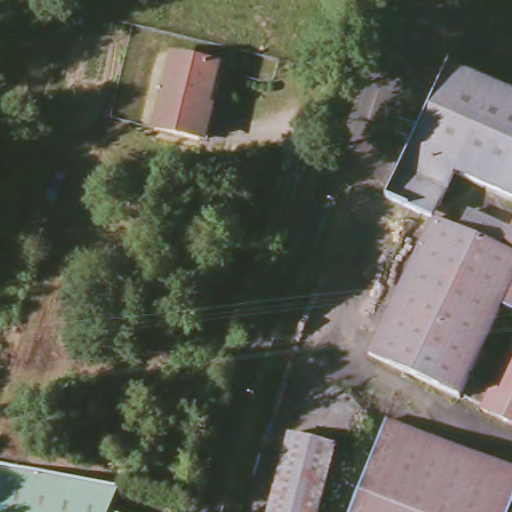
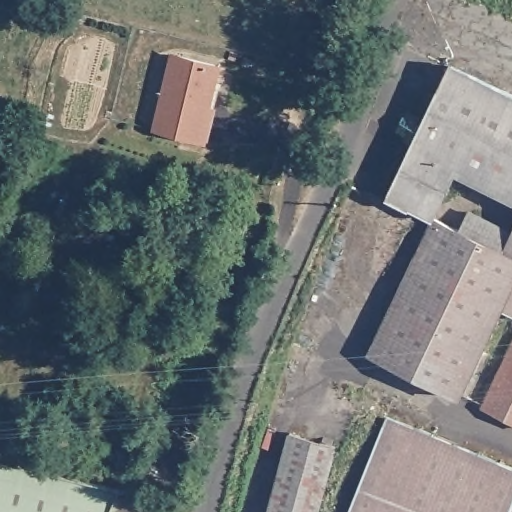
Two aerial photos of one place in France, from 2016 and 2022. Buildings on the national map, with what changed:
unchanged [(199,140),(153,127),(173,52),(218,62),(199,140)]
unchanged [(389,196),(420,137),(403,127),(413,108),(430,117),(457,65),(512,92),(512,198),(460,174),(445,205),(442,214),(439,220),(425,214),(389,196)]
unchanged [(451,412),(362,369),(439,220),(462,234),(468,222),(474,211),(512,231),(512,291),(475,366),(483,371),(462,410),(455,406),(451,412)]
unchanged [(512,338),(512,442),(472,420),(512,338)]
unchanged [(512,472),(512,512),(349,512),(387,422),(512,472)]
unchanged [(236,512),(241,491),(273,498),(289,434),(334,447),(318,512),(236,512)]
unchanged [(107,487),(101,512),(0,512),(0,463),(107,487)]

